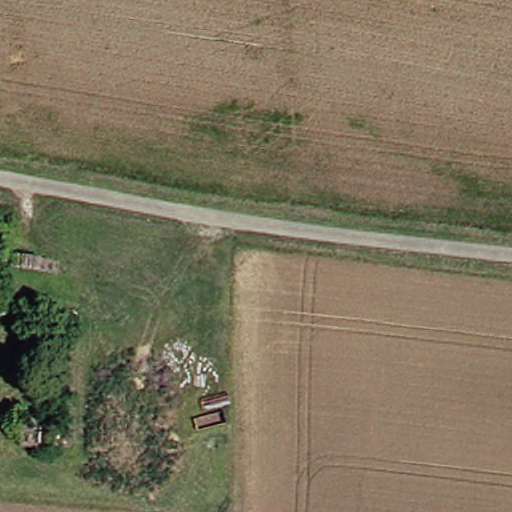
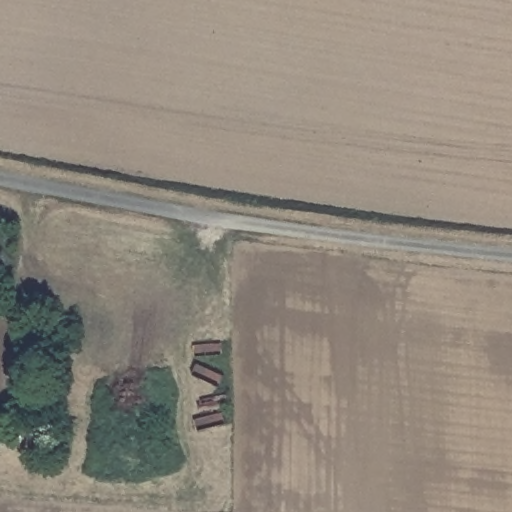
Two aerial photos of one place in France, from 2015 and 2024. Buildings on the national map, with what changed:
unchanged [(48,441),(47,435),(29,435),(29,411),(68,412),(81,413),(81,430),(68,430),(68,441),(48,441)]

